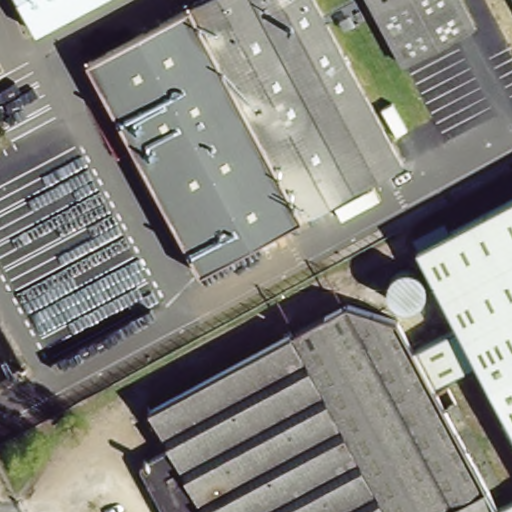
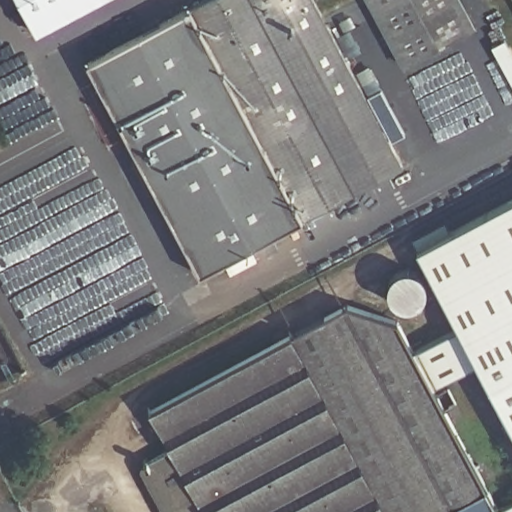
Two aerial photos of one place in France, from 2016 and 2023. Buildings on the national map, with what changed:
unchanged [(39,30),(23,0),(95,0),(39,30)]
unchanged [(188,7),(202,0),(316,0),(404,165),(354,192),(303,220),(201,274),(88,61),(188,7)]
unchanged [(477,24),(406,62),(371,0),(463,0),(477,24)]
unchanged [(465,376),(442,332),(455,325),(414,250),(512,197),(512,432),(478,369),(465,376)]
unchanged [(434,393),(495,507),(512,498),(512,512),(160,512),(151,496),(158,492),(141,460),(164,446),(143,408),(342,302),(396,321),(411,349),(442,332),(465,376),(434,393)]

